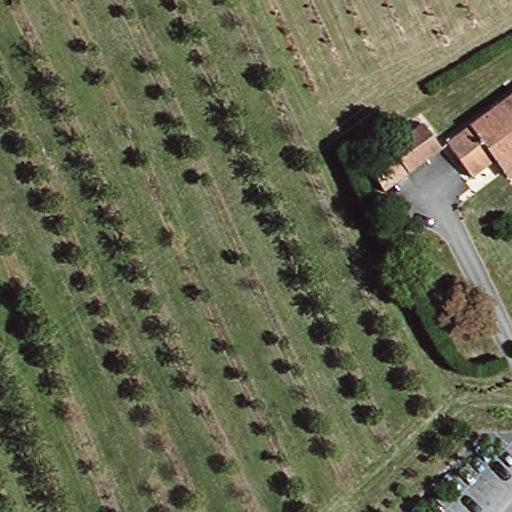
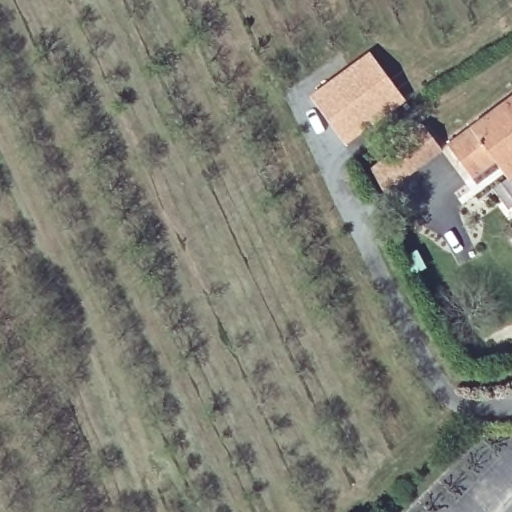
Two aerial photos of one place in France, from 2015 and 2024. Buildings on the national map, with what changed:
new [(370,51),(407,101),(345,145),(309,96),(370,51)]
unchanged [(497,161),(475,177),(450,144),(512,99),(512,151),(511,150),(497,161)]
unchanged [(440,151),(409,174),(392,149),(422,126),(440,151)]
unchanged [(512,151),(512,181),(497,161),(511,150),(512,151)]

